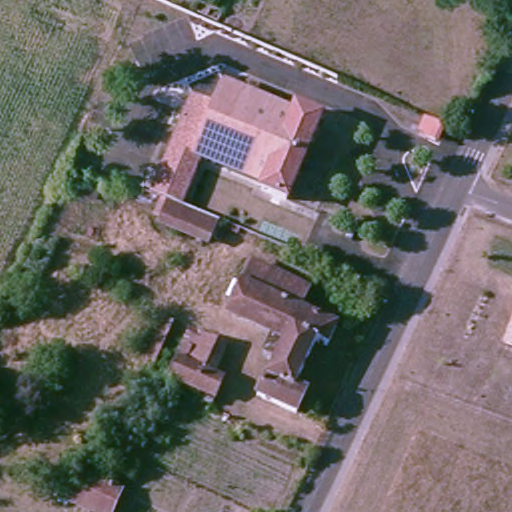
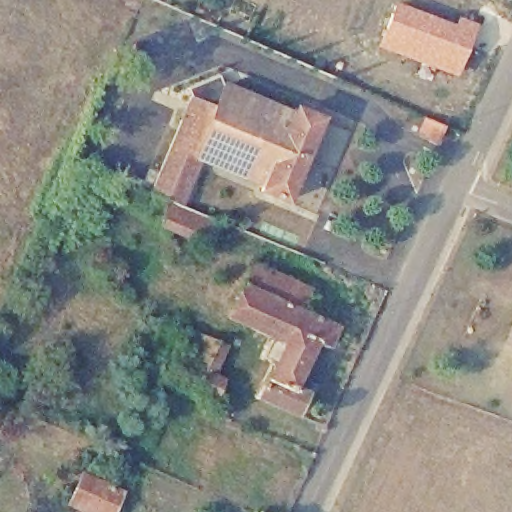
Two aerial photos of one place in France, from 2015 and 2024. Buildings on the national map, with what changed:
new [(396,1),(454,24),(458,16),(480,26),(457,77),(377,47),(396,1)]
unchanged [(166,202),(151,196),(190,100),(185,91),(219,76),(224,87),(292,114),(294,107),(321,119),(287,203),(259,192),(262,186),(204,162),(184,209),(178,207),(166,202)]
unchanged [(424,140),(434,120),(443,124),(434,144),(424,140)]
unchanged [(99,191),(93,200),(80,192),(86,182),(99,191)]
unchanged [(178,207),(184,209),(213,220),(219,222),(208,247),(157,227),(166,202),(178,207)]
unchanged [(239,237),(225,232),(228,226),(241,232),(239,237)]
unchanged [(255,400),(273,362),(261,356),(269,339),(225,320),(230,308),(252,261),(311,288),(303,307),(337,325),(327,346),(315,341),(294,386),(306,392),(295,417),(255,400)]
unchanged [(173,324),(153,372),(143,367),(164,320),(173,324)]
unchanged [(503,346),(512,320),(512,349),(503,346)]
unchanged [(168,380),(189,330),(197,333),(226,347),(214,375),(223,380),(214,400),(175,383),(168,380)]
unchanged [(120,491),(111,512),(85,512),(68,504),(81,474),(120,491)]

